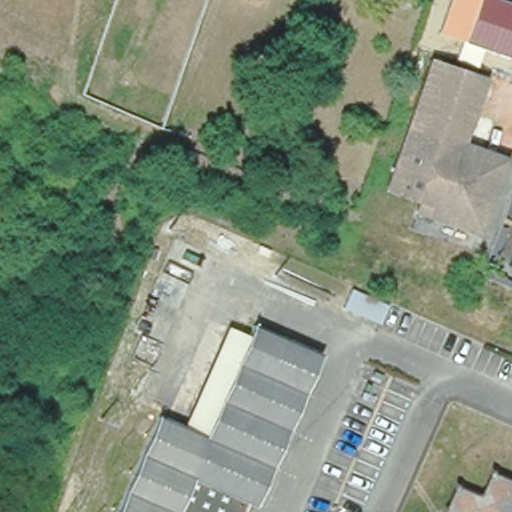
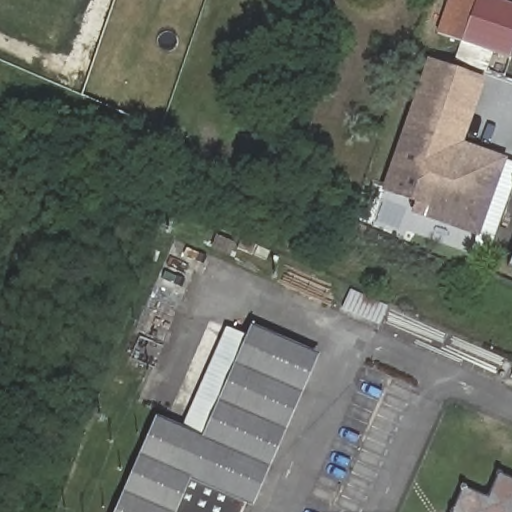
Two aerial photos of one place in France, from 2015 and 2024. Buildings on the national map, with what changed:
unchanged [(510,56),(435,31),(445,0),(504,0),(512,2),(512,52),(510,56)]
unchanged [(431,66),(483,85),(460,149),(505,165),(478,239),(416,216),(420,205),(385,193),(431,66)]
unchanged [(508,269),(512,259),(512,271),(508,269)]
unchanged [(388,307),(380,325),(337,305),(345,288),(388,307)]
unchanged [(242,327),(245,320),(311,347),(246,505),(235,500),(230,512),(105,512),(150,411),(174,421),(220,318),(242,327)]
unchanged [(487,498),(498,472),(512,478),(512,512),(455,512),(464,490),(487,498)]

